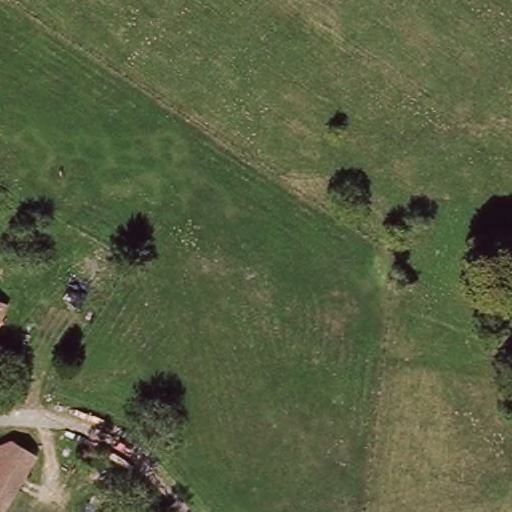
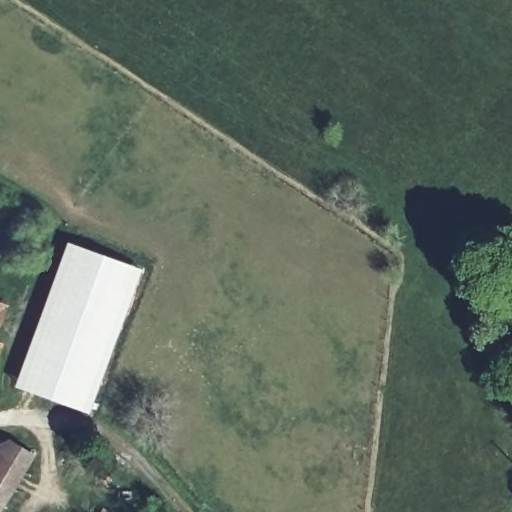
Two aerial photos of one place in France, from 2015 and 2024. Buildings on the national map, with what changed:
new [(71,242),(146,270),(93,416),(18,388),(71,242)]
demolished [(5,342),(16,348),(0,383),(0,298),(19,307),(5,342)]
new [(0,326),(0,301),(9,305),(0,326)]
new [(0,343),(4,345),(0,354),(0,343)]
unchanged [(49,457),(13,512),(0,512),(0,463),(7,452),(26,445),(49,457)]

